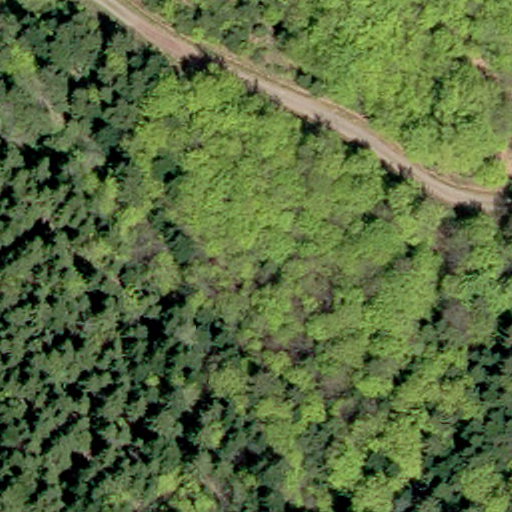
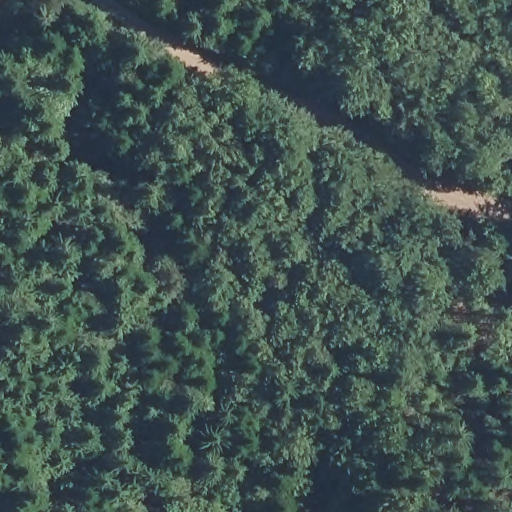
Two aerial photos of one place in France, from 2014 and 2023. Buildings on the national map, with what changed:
[]

